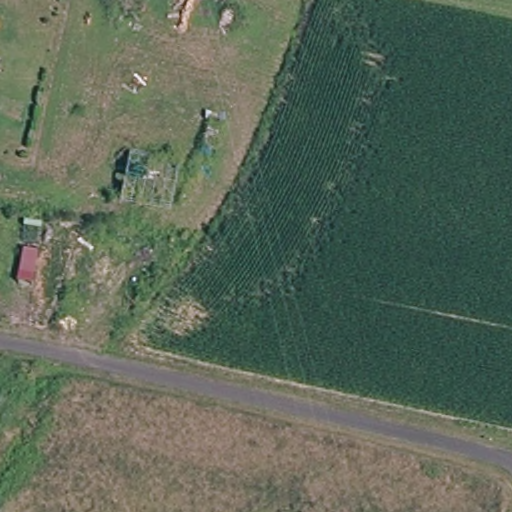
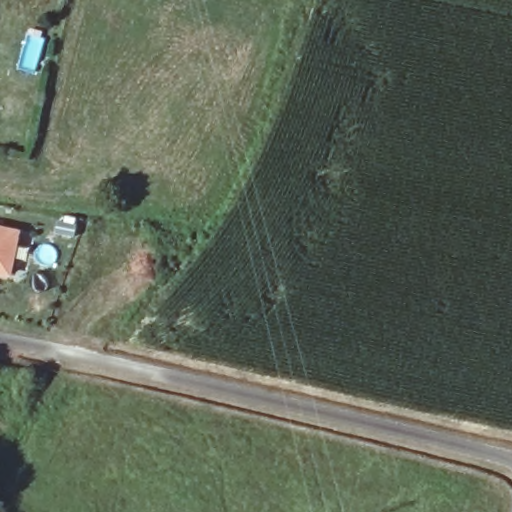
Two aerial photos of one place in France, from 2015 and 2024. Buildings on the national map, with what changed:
new [(20,231),(11,278),(0,276),(0,227),(20,231)]

